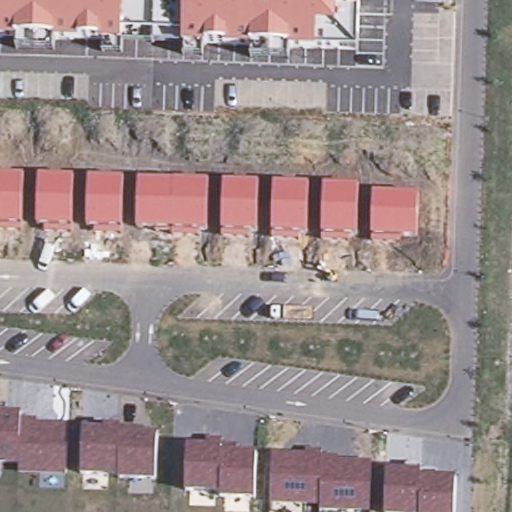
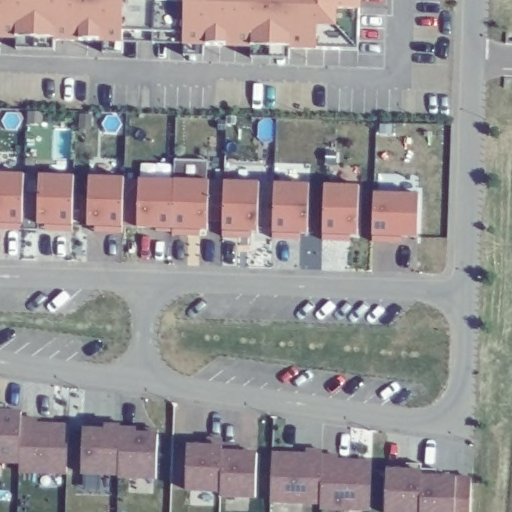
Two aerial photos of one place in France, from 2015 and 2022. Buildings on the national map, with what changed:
unchanged [(317,49),(317,52),(183,48),(183,34),(123,32),(122,47),(0,42),(0,0),(360,0),(359,51),(317,49)]
unchanged [(22,226),(0,224),(0,173),(25,175),(22,226)]
unchanged [(40,175),(75,177),(72,227),(37,225),(40,175)]
unchanged [(89,177),(125,179),(122,229),(87,227),(89,177)]
unchanged [(138,180),(210,182),(209,230),(136,228),(138,180)]
unchanged [(224,182),(260,184),(257,233),(222,232),(224,182)]
unchanged [(274,184),(310,185),(307,235),(272,235),(274,184)]
unchanged [(325,185),(360,186),(358,237),(322,235),(325,185)]
unchanged [(374,192),(420,194),(419,238),(372,237),(374,192)]
unchanged [(22,416),(37,416),(36,421),(67,423),(66,473),(20,472),(20,464),(0,463),(0,410),(21,410),(22,416)]
unchanged [(105,432),(106,426),(138,427),(138,433),(158,433),(155,481),(82,477),(84,431),(105,432)]
unchanged [(188,445),(209,445),(209,436),(224,437),(224,443),(238,443),(238,451),(257,452),(255,497),(220,497),(220,491),(186,492),(188,445)]
unchanged [(274,453),(340,455),(340,461),(372,462),(370,511),(320,510),(320,503),(270,501),(274,453)]
unchanged [(387,471),(422,472),(422,477),(457,478),(456,512),(385,512),(387,471)]

